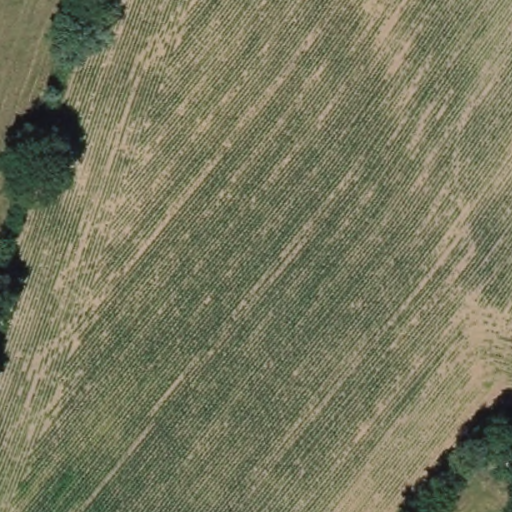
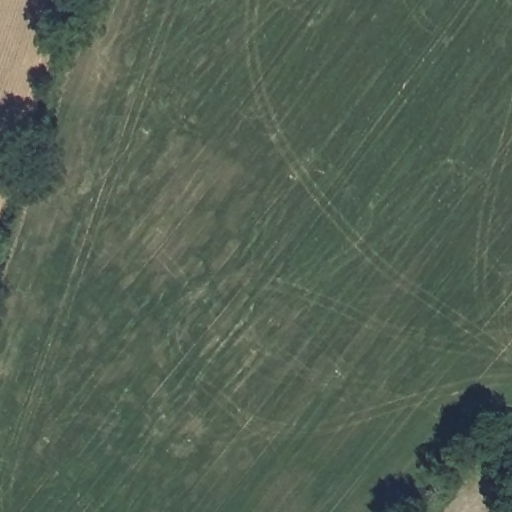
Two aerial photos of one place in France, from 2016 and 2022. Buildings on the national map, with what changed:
unchanged [(512,432),(506,417),(512,416),(512,432)]

